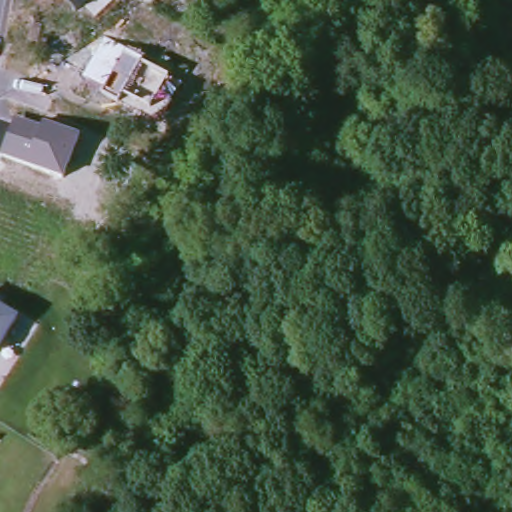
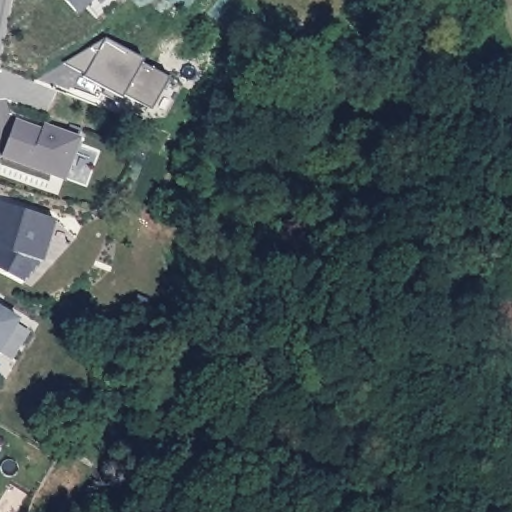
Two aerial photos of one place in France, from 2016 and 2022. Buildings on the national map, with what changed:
unchanged [(65,0),(93,0),(77,14),(65,0)]
unchanged [(84,75),(65,64),(105,39),(143,58),(141,62),(167,77),(151,108),(84,75)]
unchanged [(2,156),(16,119),(42,128),(45,125),(80,138),(64,181),(2,156)]
new [(23,283),(0,269),(0,203),(55,220),(42,260),(23,283)]
unchanged [(0,350),(0,307),(18,319),(0,350)]

